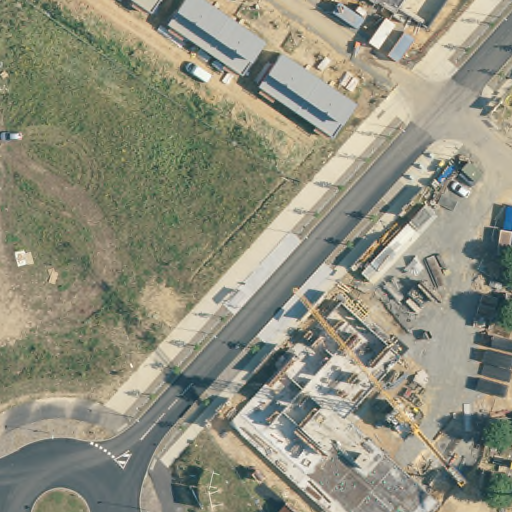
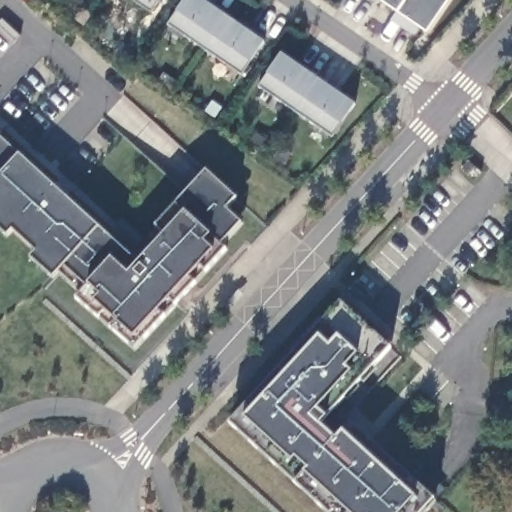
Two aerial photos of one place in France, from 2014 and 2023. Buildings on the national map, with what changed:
unchanged [(132,0),(161,0),(151,13),(132,0)]
unchanged [(170,25),(176,12),(184,0),(203,0),(265,43),(252,62),(242,73),(170,25)]
unchanged [(374,1),(372,0),(376,0),(374,1)]
unchanged [(427,28),(422,24),(421,26),(407,16),(403,21),(394,15),(401,9),(393,3),(391,5),(384,0),(446,0),(427,28)]
unchanged [(306,99),(296,111),(258,85),(267,73),(281,52),(318,80),(306,99)]
unchanged [(306,99),(318,80),(356,106),(341,126),(333,137),(296,111),(306,99)]
new [(227,209),(241,222),(220,244),(225,249),(135,346),(113,327),(100,317),(77,297),(83,292),(59,270),(53,277),(32,257),(37,251),(13,229),(8,235),(0,227),(0,136),(20,154),(139,263),(164,234),(156,225),(206,170),(237,198),(227,209)]
new [(340,301),(390,345),(327,417),(321,424),(336,438),(344,430),(352,422),(435,498),(423,512),(329,512),(231,421),(340,301)]

